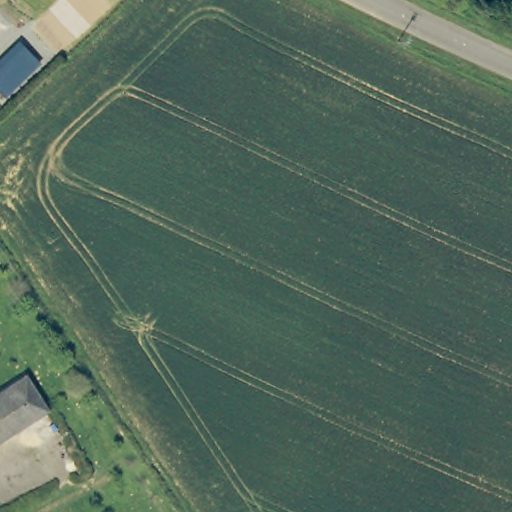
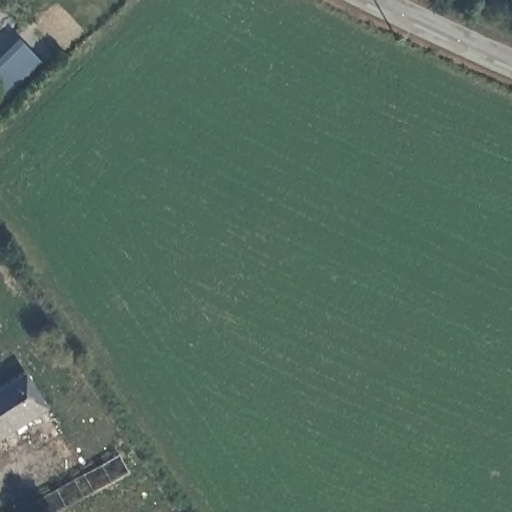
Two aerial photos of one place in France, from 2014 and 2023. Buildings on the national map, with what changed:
unchanged [(0,93),(0,59),(19,42),(38,64),(4,96),(0,93)]
unchanged [(47,410),(0,445),(0,392),(21,376),(47,410)]

